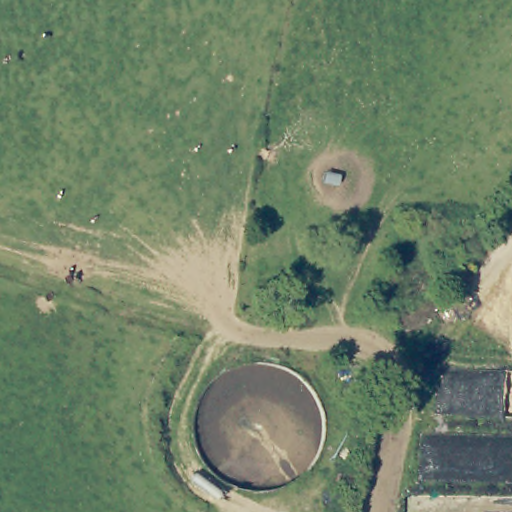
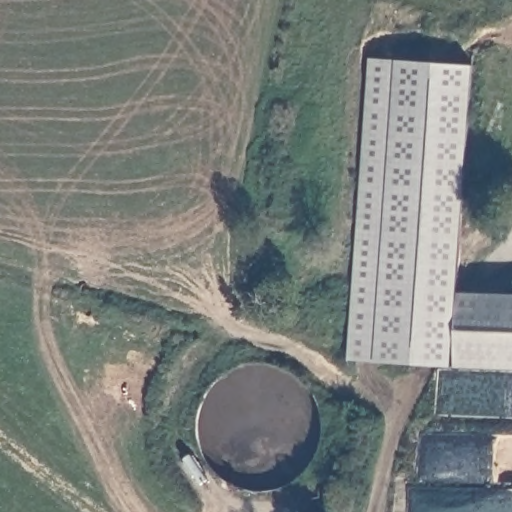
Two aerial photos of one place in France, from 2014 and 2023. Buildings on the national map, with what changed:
new [(472,65),(457,291),(454,366),(346,360),(365,57),(472,65)]
new [(457,291),(512,293),(512,368),(454,366),(457,291)]
demolished [(282,370),(298,380),(311,393),(321,407),(324,423),(323,441),(317,461),(305,478),(287,491),(266,496),(246,495),(229,488),(214,475),(204,463),(198,445),(197,426),(202,402),(216,384),(231,374),(243,370),(260,368),(282,370)]

